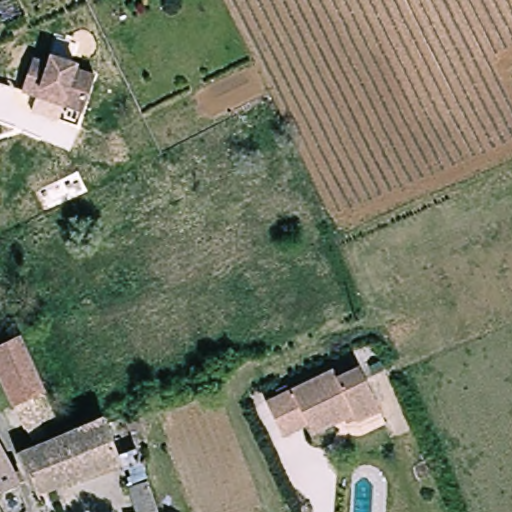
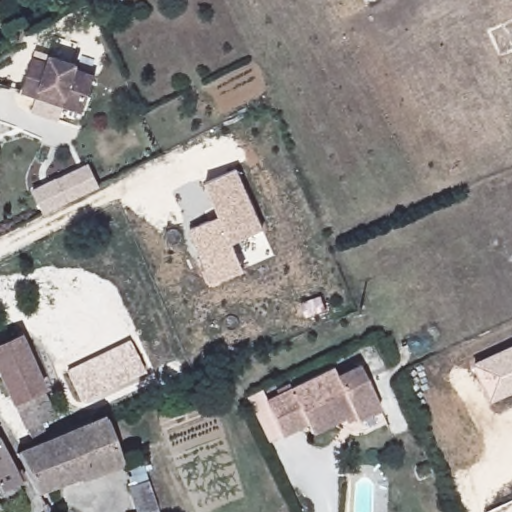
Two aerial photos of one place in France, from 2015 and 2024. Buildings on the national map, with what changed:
unchanged [(22,93),(35,59),(50,65),(54,57),(78,67),(76,71),(97,79),(84,115),(61,107),(40,100),(22,93)]
new [(88,162),(100,186),(68,202),(44,214),(32,190),(58,177),(88,162)]
new [(243,270),(213,283),(188,229),(220,216),(204,182),(238,170),(264,229),(233,243),(243,270)]
unchanged [(43,390),(11,406),(0,383),(0,343),(17,334),(43,390)]
new [(131,340),(146,373),(83,402),(68,370),(131,340)]
new [(493,401),(474,364),(512,346),(512,392),(493,401)]
unchanged [(338,371),(341,380),(364,370),(386,413),(364,422),(358,415),(313,434),(308,422),(276,435),(259,403),(338,371)]
unchanged [(117,465),(36,492),(30,479),(17,459),(15,455),(56,437),(99,420),(117,465)]
unchanged [(0,498),(0,438),(26,486),(0,498)]
unchanged [(129,512),(120,486),(144,475),(155,512),(129,512)]

